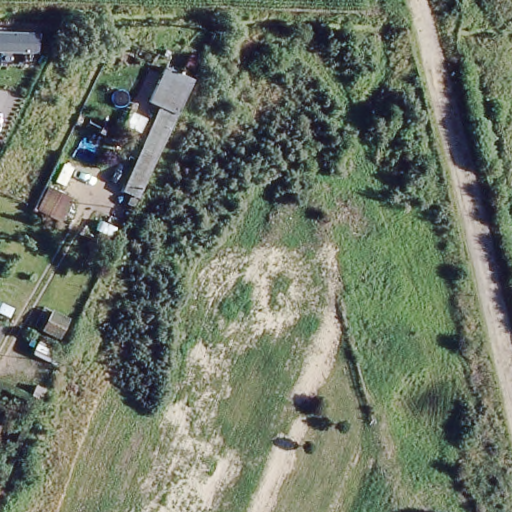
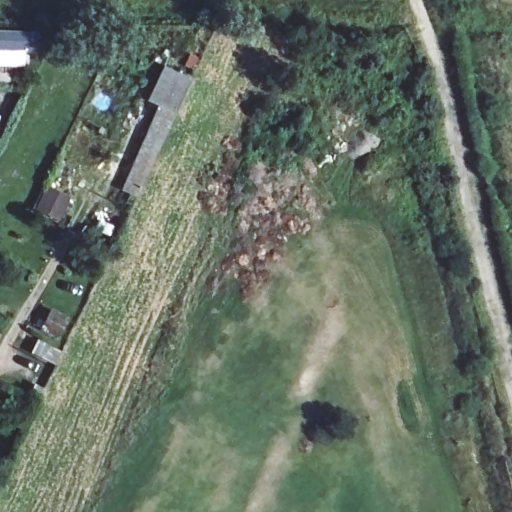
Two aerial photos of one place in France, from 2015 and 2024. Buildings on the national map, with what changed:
unchanged [(138,191),(129,186),(165,104),(153,98),(168,65),(194,76),(138,191)]
unchanged [(0,341),(0,324),(7,327),(0,341)]

